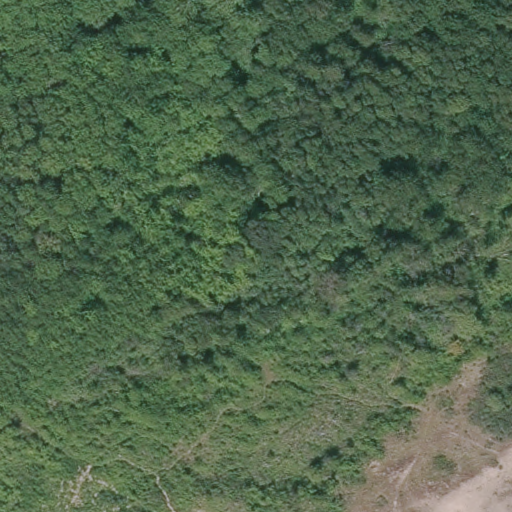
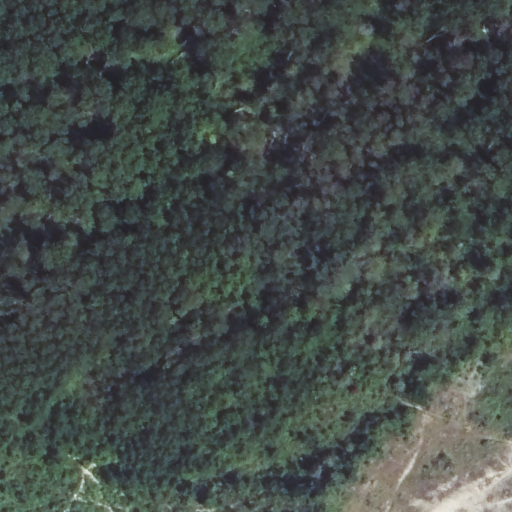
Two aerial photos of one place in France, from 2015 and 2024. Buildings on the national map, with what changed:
[]

